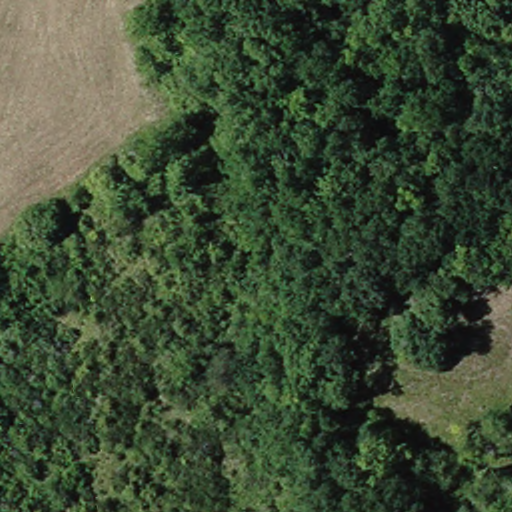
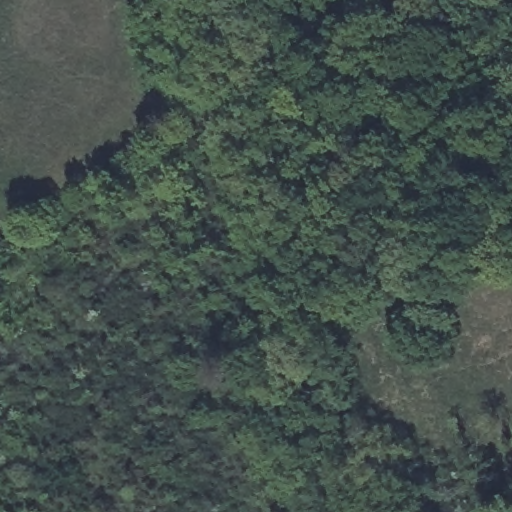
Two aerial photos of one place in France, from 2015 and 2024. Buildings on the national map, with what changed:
unchanged [(421,275),(512,256),(512,278),(425,296),(421,275)]

